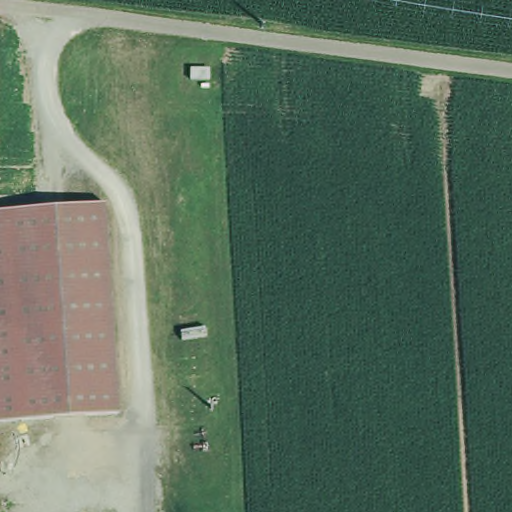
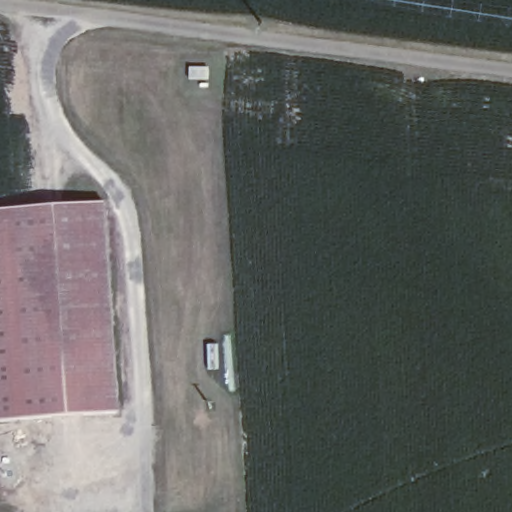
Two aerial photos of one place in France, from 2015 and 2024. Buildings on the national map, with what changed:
unchanged [(115,417),(0,425),(0,214),(100,207),(115,417)]

